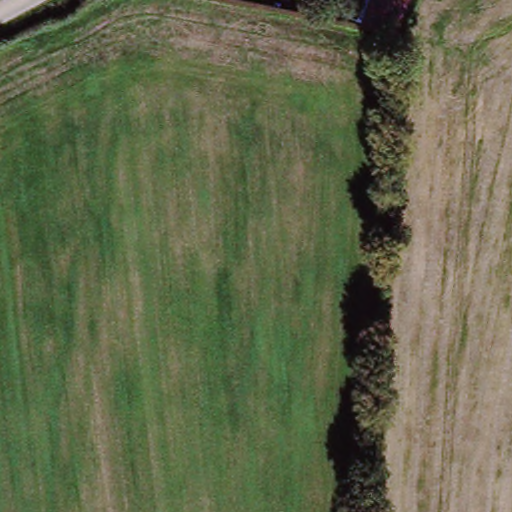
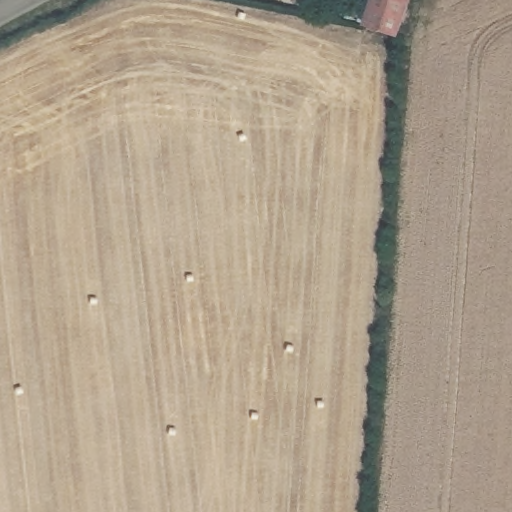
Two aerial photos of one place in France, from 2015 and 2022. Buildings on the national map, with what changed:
unchanged [(399,29),(367,19),(372,0),(407,0),(399,29)]

